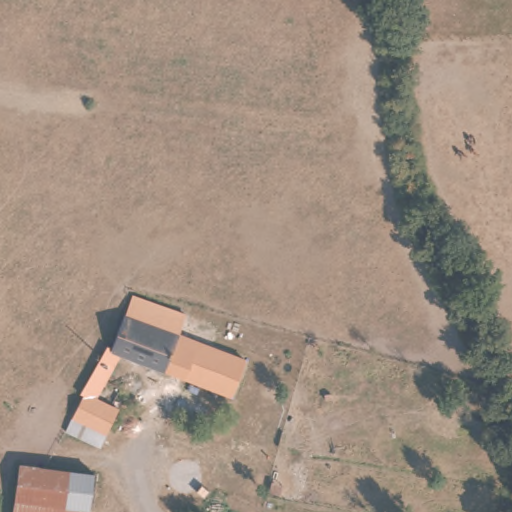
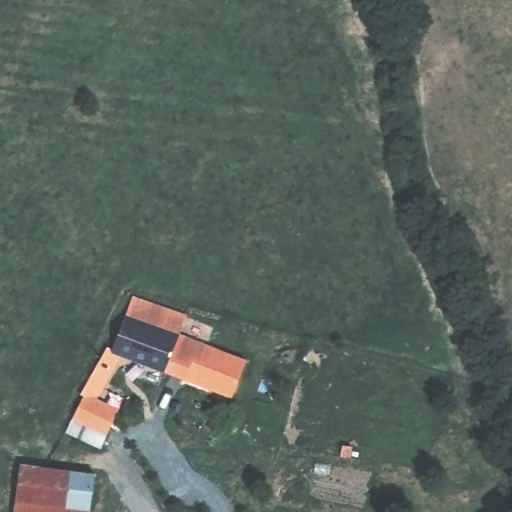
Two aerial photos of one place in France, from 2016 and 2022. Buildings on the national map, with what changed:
unchanged [(71,430),(77,418),(91,395),(86,392),(110,345),(115,347),(131,315),(177,333),(163,370),(127,358),(103,402),(125,413),(112,435),(106,447),(71,430)]
unchanged [(262,364),(256,380),(242,375),(234,397),(163,370),(177,333),(183,335),(262,364)]
unchanged [(83,512),(11,512),(16,466),(87,473),(83,512)]

